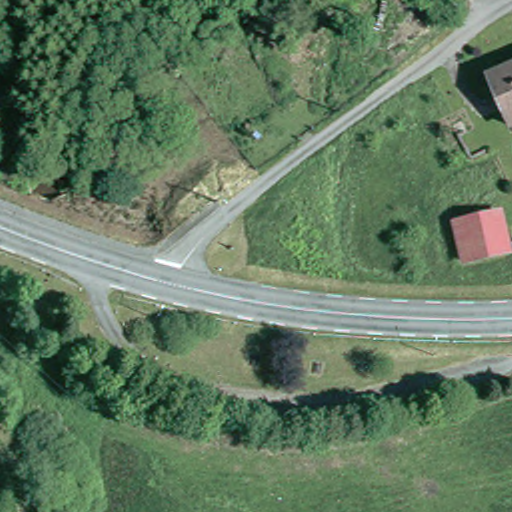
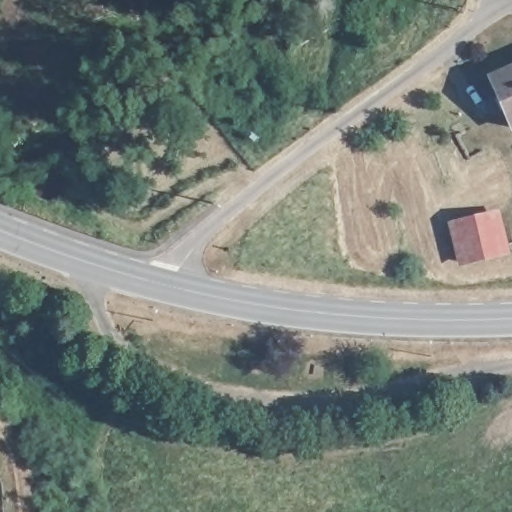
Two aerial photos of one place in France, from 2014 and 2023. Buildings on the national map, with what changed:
unchanged [(493,103),(485,84),(512,73),(512,132),(507,134),(498,114),(491,117),(487,105),(493,103)]
unchanged [(505,255),(466,264),(457,222),(494,213),(505,255)]

